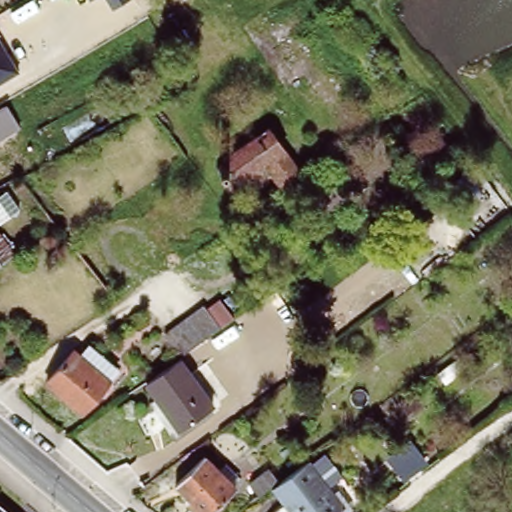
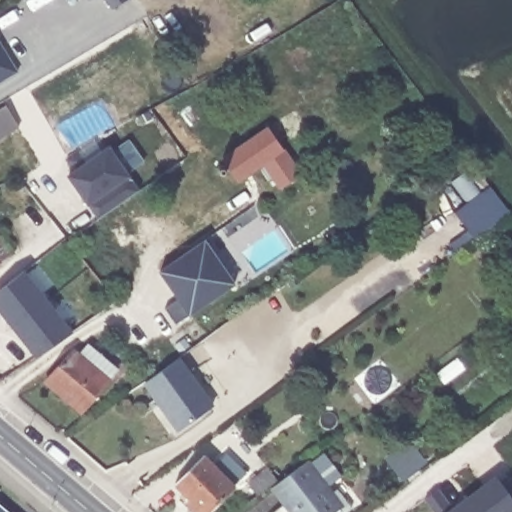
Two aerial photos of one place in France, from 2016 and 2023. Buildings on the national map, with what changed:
unchanged [(112,7),(108,0),(125,0),(112,7)]
unchanged [(0,82),(0,41),(18,70),(0,82)]
unchanged [(0,137),(0,114),(10,131),(0,137)]
unchanged [(303,179),(281,191),(266,165),(241,182),(233,174),(224,178),(221,170),(228,165),(226,162),(270,131),(303,179)]
new [(99,220),(91,205),(89,205),(69,175),(109,146),(131,176),(141,190),(99,220)]
unchanged [(474,193),(459,205),(444,185),(461,174),(474,193)]
unchanged [(0,263),(0,230),(16,251),(0,263)]
new [(336,230),(344,240),(334,247),(324,237),(336,230)]
new [(191,315),(176,323),(166,308),(180,300),(160,271),(206,239),(237,283),(191,315)]
new [(0,310),(0,291),(26,268),(74,330),(36,357),(0,310)]
demolished [(217,292),(235,317),(178,357),(161,333),(217,292)]
unchanged [(115,377),(79,418),(44,390),(71,358),(74,360),(84,350),(115,377)]
unchanged [(179,367),(212,407),(181,434),(144,390),(178,362),(179,367)]
new [(414,445),(429,466),(405,484),(389,463),(414,445)]
unchanged [(187,512),(191,507),(173,491),(201,463),(215,476),(221,470),(236,485),(231,491),(233,493),(214,512),(187,512)]
unchanged [(309,470),(329,497),(339,491),(354,512),(288,512),(276,496),(309,470)]
unchanged [(248,491),(271,473),(281,486),(258,505),(248,491)]
new [(453,508),(498,477),(505,487),(512,482),(512,512),(437,512),(427,498),(438,489),(453,508)]
unchanged [(0,512),(0,510),(3,512),(0,512)]

